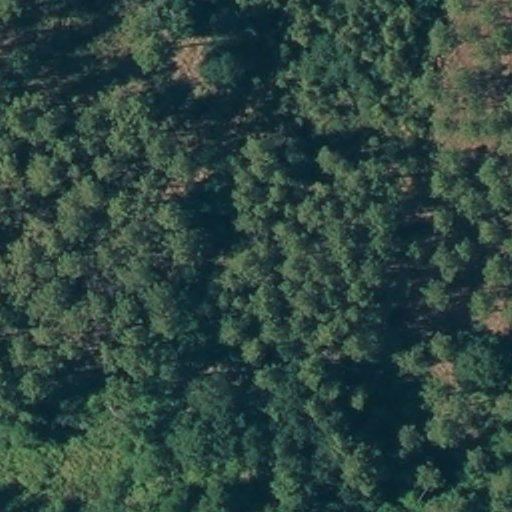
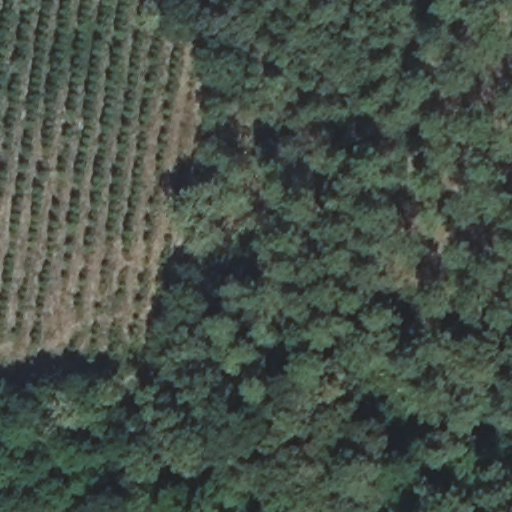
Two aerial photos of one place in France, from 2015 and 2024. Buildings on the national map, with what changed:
[]

